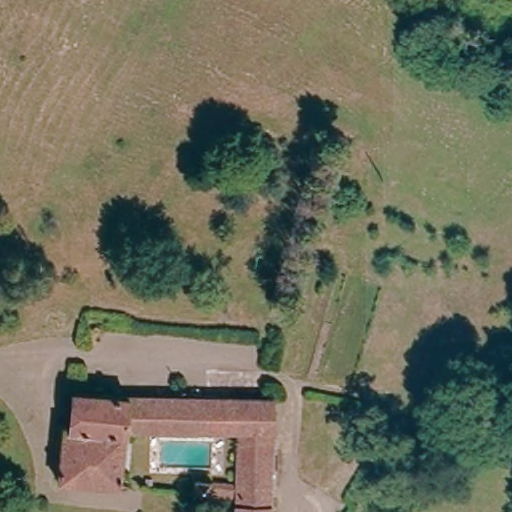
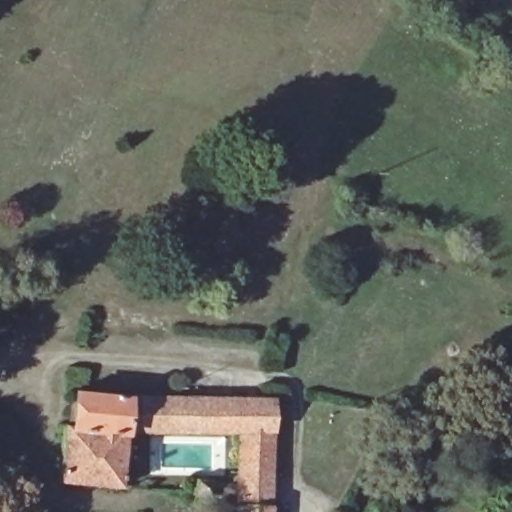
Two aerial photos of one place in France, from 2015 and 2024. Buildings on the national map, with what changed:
unchanged [(236,512),(236,498),(194,494),(195,478),(236,481),(237,432),(123,432),(120,488),(59,482),(60,420),(70,421),(70,387),(123,405),(272,407),(272,512),(236,512)]

